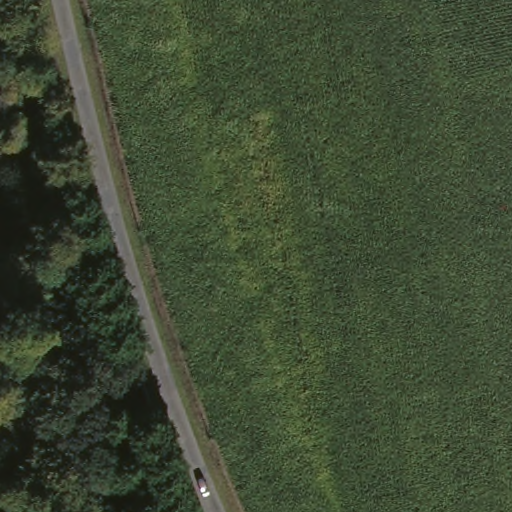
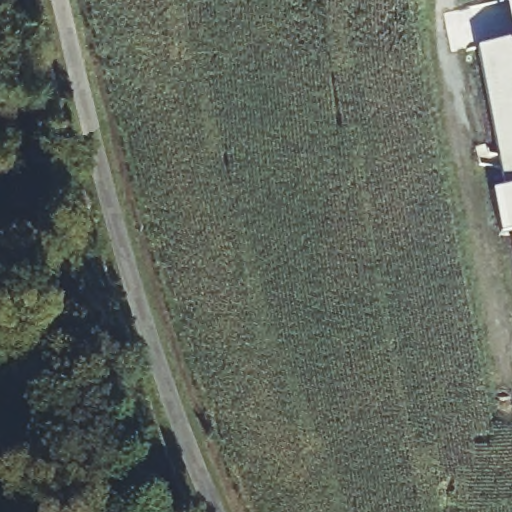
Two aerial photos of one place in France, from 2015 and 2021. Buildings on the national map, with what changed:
new [(512,39),(512,227),(477,48),(512,39)]

